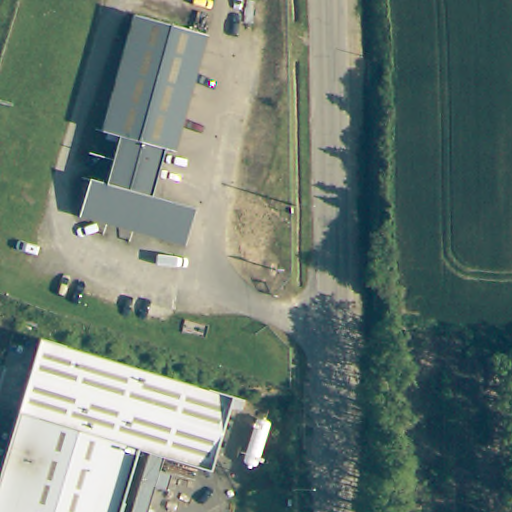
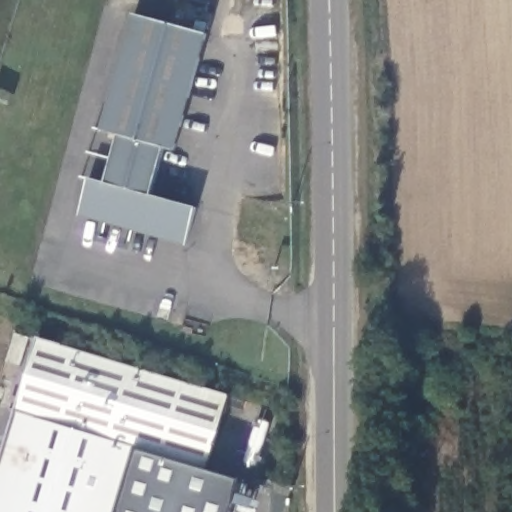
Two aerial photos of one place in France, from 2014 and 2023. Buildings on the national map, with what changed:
unchanged [(87,175),(104,180),(117,134),(100,129),(134,11),(205,33),(173,151),(165,149),(150,195),(193,209),(182,246),(125,227),(76,214),(87,175)]
unchanged [(229,397),(206,470),(160,457),(156,471),(168,474),(164,489),(151,485),(144,512),(0,512),(0,467),(15,413),(36,340),(229,397)]
new [(144,512),(151,485),(164,489),(168,474),(156,471),(160,457),(206,470),(242,480),(233,512),(144,512)]

